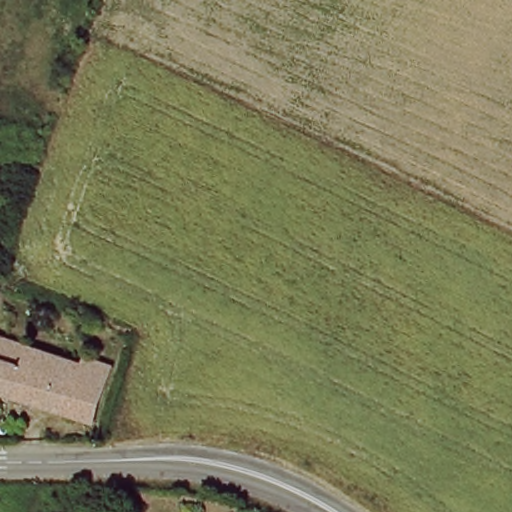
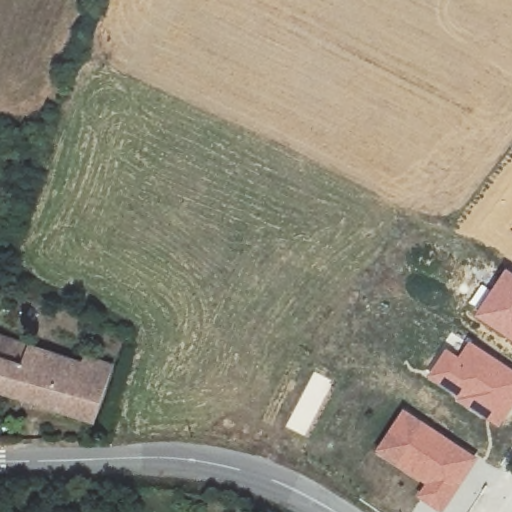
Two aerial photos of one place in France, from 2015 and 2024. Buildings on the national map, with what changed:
new [(512,271),(512,340),(475,315),(507,268),(512,271)]
new [(460,356),(470,341),(512,368),(512,410),(500,428),(486,419),(491,412),(476,401),(471,409),(455,398),(461,390),(447,380),(442,386),(427,376),(447,348),(460,356)]
unchanged [(0,391),(0,345),(83,375),(87,365),(110,375),(92,422),(0,391)]
new [(403,408),(479,459),(443,512),(439,512),(415,496),(423,485),(375,452),(403,408)]

